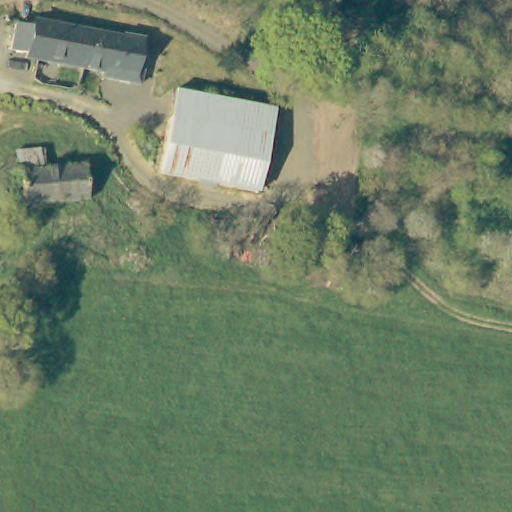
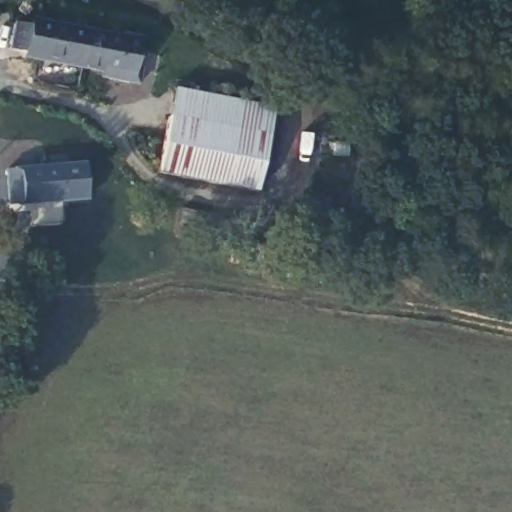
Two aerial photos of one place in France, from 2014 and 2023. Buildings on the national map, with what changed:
unchanged [(120,76),(119,85),(103,83),(103,73),(28,59),(12,51),(18,25),(31,28),(32,20),(179,49),(173,85),(120,76)]
unchanged [(274,109),(258,190),(159,172),(175,89),(274,109)]
unchanged [(97,199),(20,205),(17,169),(25,169),(24,150),(51,149),(53,168),(94,165),(97,199)]

